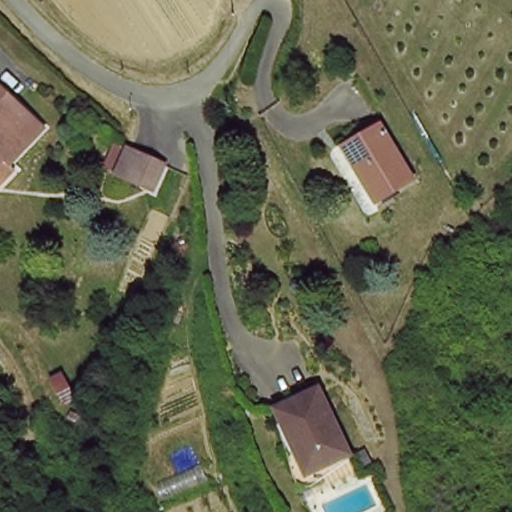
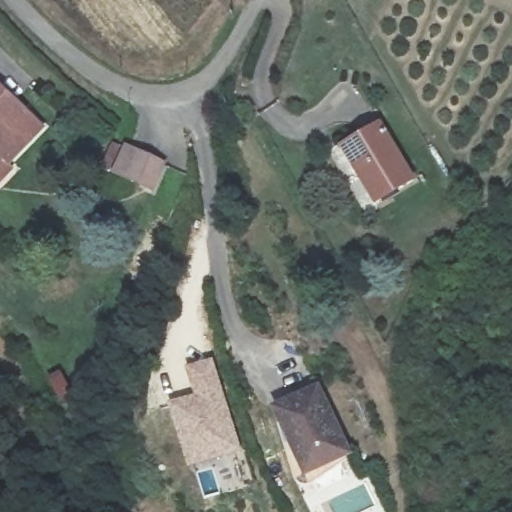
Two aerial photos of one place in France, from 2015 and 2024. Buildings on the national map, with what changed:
unchanged [(6,165),(0,160),(0,90),(41,127),(6,165)]
unchanged [(382,125),(418,185),(379,208),(356,171),(364,166),(350,144),(382,125)]
unchanged [(159,159),(146,188),(108,171),(122,141),(159,159)]
new [(193,394),(185,367),(214,358),(243,450),(188,466),(169,402),(193,394)]
unchanged [(314,390),(346,452),(304,473),(294,453),(302,450),(279,408),(314,390)]

